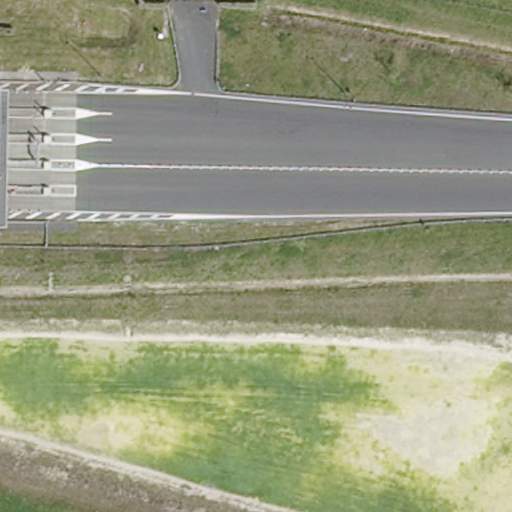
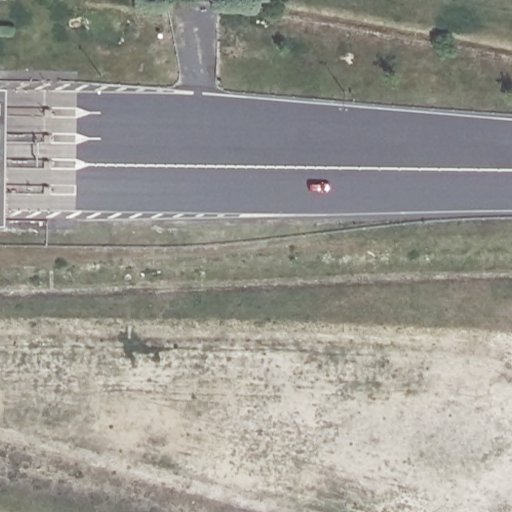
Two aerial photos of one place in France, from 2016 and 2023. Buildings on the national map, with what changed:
unchanged [(7,83),(4,219),(0,219),(0,83),(7,83)]

